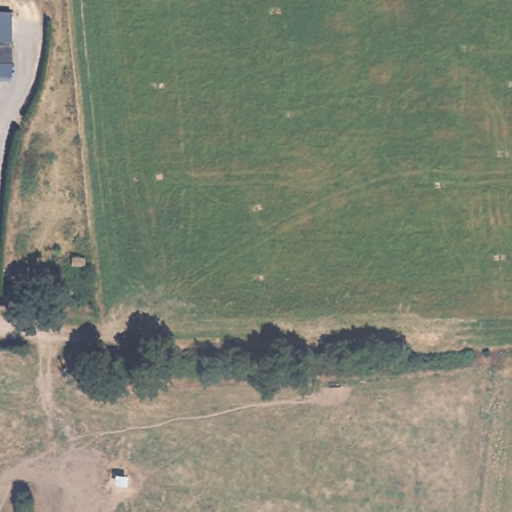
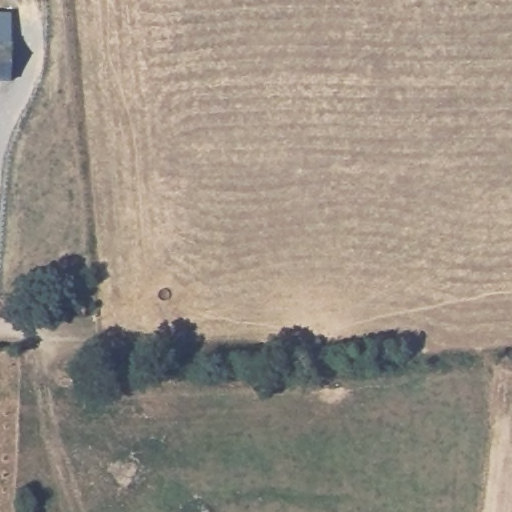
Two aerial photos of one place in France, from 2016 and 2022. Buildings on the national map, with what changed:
unchanged [(0,78),(0,11),(16,11),(12,79),(0,78)]

